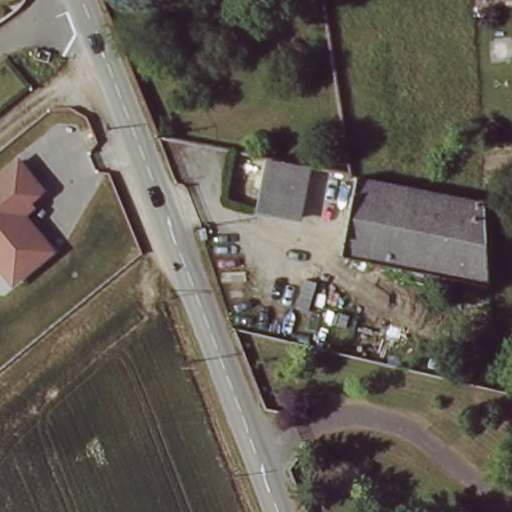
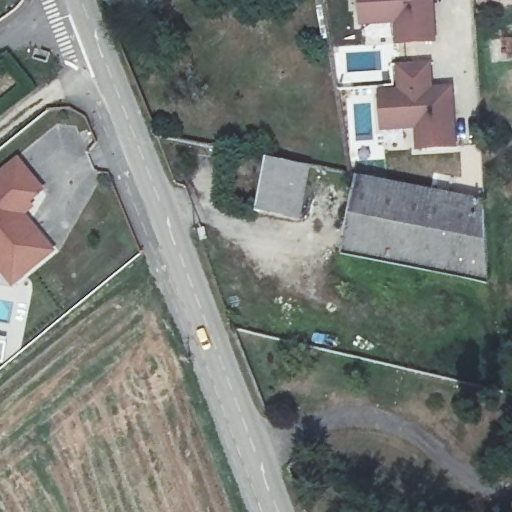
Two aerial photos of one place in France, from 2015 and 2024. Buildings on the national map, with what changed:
new [(436,0),(439,37),(403,39),(402,18),(401,16),(367,19),(367,12),(366,0),(436,0)]
unchanged [(491,0),(502,0),(502,1),(491,0)]
new [(387,117),(386,88),(406,87),(404,60),(434,59),(435,79),(430,79),(431,86),(456,85),(459,142),(423,144),(422,123),(421,122),(388,124),(387,117)]
unchanged [(257,209),(266,155),(308,164),(298,215),(257,209)]
unchanged [(0,257),(0,186),(28,164),(50,191),(27,210),(61,251),(32,275),(22,283),(0,257)]
unchanged [(486,197),(490,278),(342,253),(354,172),(486,197)]

